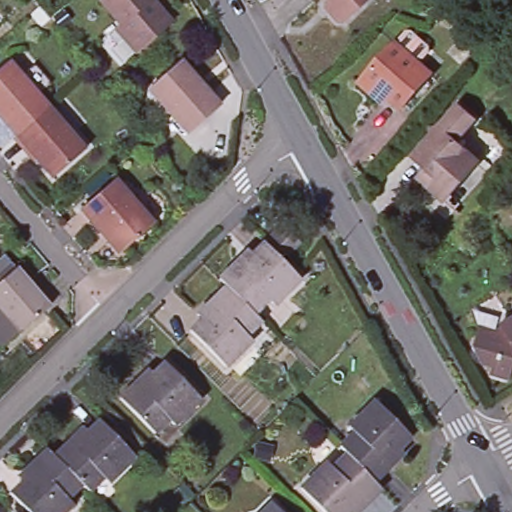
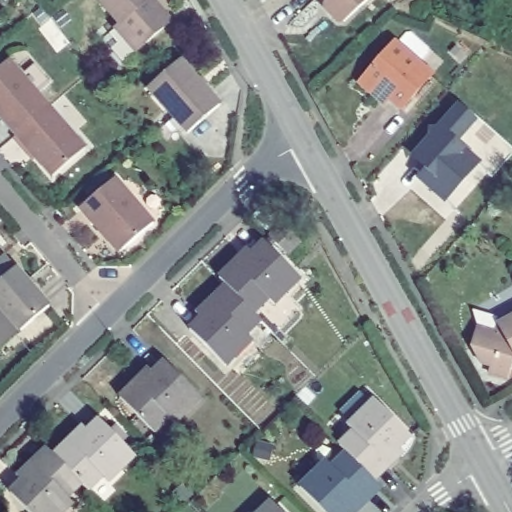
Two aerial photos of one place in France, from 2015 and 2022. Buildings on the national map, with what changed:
unchanged [(159,0),(176,21),(138,55),(102,2),(104,0),(159,0)]
unchanged [(311,0),(321,0),(314,4),(311,0)]
unchanged [(328,0),(372,0),(344,27),(328,0)]
unchanged [(397,40),(440,75),(406,114),(392,102),(384,109),(357,80),(397,40)]
unchanged [(0,73),(15,60),(90,148),(53,182),(0,119),(0,73)]
unchanged [(184,61),(222,106),(192,137),(151,90),(184,61)]
unchanged [(459,105),(479,121),(460,146),(485,166),(453,211),(427,191),(414,160),(459,105)]
unchanged [(117,176),(159,227),(122,257),(81,211),(117,176)]
unchanged [(192,328),(225,286),(221,280),(247,248),(256,252),(265,240),(301,279),(259,318),(266,323),(230,367),(192,328)]
unchanged [(54,307),(21,339),(15,331),(0,313),(0,281),(19,266),(54,307)]
unchanged [(0,348),(0,313),(15,331),(0,348)]
unchanged [(511,381),(491,379),(492,370),(482,368),(472,347),(477,327),(500,327),(512,320),(512,378),(511,381)]
unchanged [(148,367),(157,372),(166,363),(205,398),(158,440),(120,397),(148,367)]
unchanged [(327,457),(334,466),(347,452),(339,442),(353,432),(345,424),(374,397),(412,440),(374,481),(384,492),(361,512),(322,512),(300,487),(327,457)]
unchanged [(25,482),(14,471),(48,446),(58,454),(82,427),(92,432),(104,420),(137,457),(94,500),(83,488),(72,500),(79,507),(73,512),(28,512),(13,494),(25,482)]
unchanged [(268,502),(280,512),(258,512),(268,502)]

